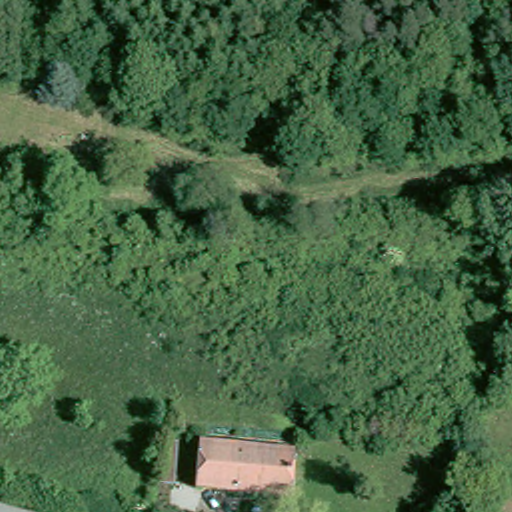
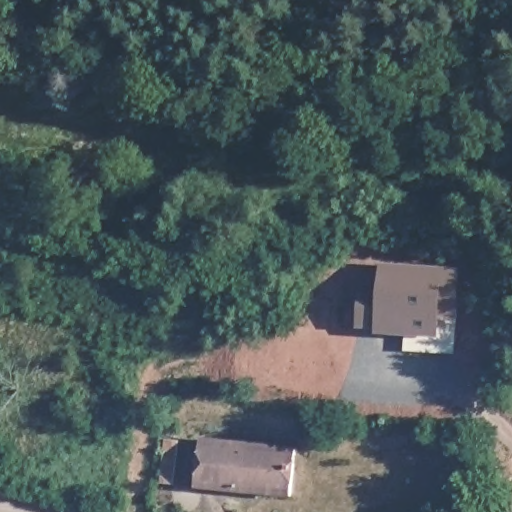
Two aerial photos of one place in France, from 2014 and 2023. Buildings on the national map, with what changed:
new [(362,286),(379,287),(380,263),(455,267),(452,293),(457,293),(452,353),(433,351),(434,332),(405,330),(405,322),(359,320),(362,286)]
unchanged [(294,451),(290,495),(200,489),(203,443),(294,451)]

